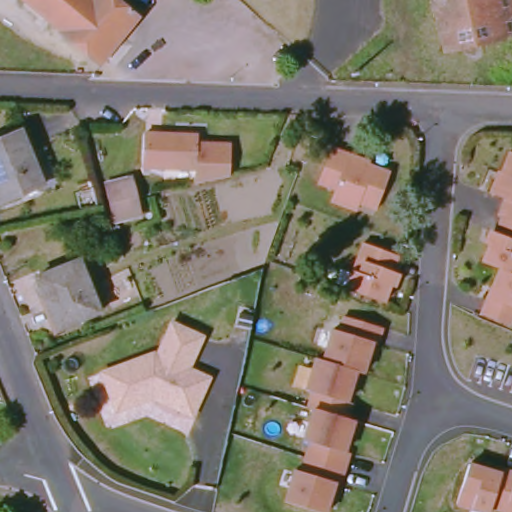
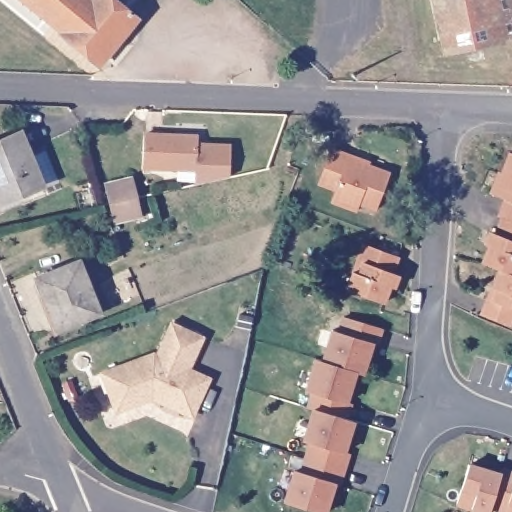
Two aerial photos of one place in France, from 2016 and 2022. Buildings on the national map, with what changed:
unchanged [(5,3),(1,0),(8,0),(5,3)]
unchanged [(90,68),(55,40),(58,37),(11,0),(84,0),(86,2),(87,0),(114,0),(132,16),(90,68)]
unchanged [(500,41),(446,52),(435,0),(512,0),(512,34),(499,37),(500,41)]
unchanged [(21,133),(42,189),(6,202),(0,204),(0,140),(21,133)]
unchanged [(194,190),(194,176),(141,175),(142,142),(196,144),(196,155),(205,156),(205,152),(229,152),(228,182),(194,190)]
unchanged [(386,168),(374,207),(357,201),(355,207),(329,199),(334,185),(316,179),(321,165),(327,150),(342,155),(345,150),(360,155),(358,160),(360,160),(386,168)]
unchanged [(477,264),(490,234),(494,235),(500,221),(496,219),(503,201),(490,195),(497,180),(501,181),(512,156),(512,279),(493,271),(477,264)]
unchanged [(113,190),(131,186),(138,185),(142,202),(147,221),(140,223),(122,227),(117,208),(113,190)]
unchanged [(346,296),(361,248),(395,259),(390,275),(393,276),(384,307),(346,296)]
unchanged [(56,330),(43,298),(40,299),(32,280),(74,263),(96,314),(56,330)]
unchanged [(505,329),(475,316),(493,271),(512,279),(512,313),(511,313),(505,329)]
unchanged [(294,469),(300,471),(310,442),(303,440),(312,409),(307,407),(312,392),(305,390),(315,358),(322,360),(331,329),(338,331),(343,316),(380,328),(375,343),(370,342),(361,373),(353,371),(345,401),(350,402),(345,418),(352,420),(342,451),(347,452),(338,484),(333,482),(324,512),(320,512),(284,501),(294,469)]
unchanged [(100,372),(145,357),(149,358),(163,327),(193,341),(183,362),(176,365),(174,371),(198,383),(180,419),(141,400),(137,401),(135,396),(128,398),(129,401),(125,405),(105,411),(98,392),(92,374),(100,372)]
unchanged [(495,507),(493,512),(487,512),(460,504),(472,464),(503,474),(505,469),(512,471),(512,512),(508,512),(495,507)]

